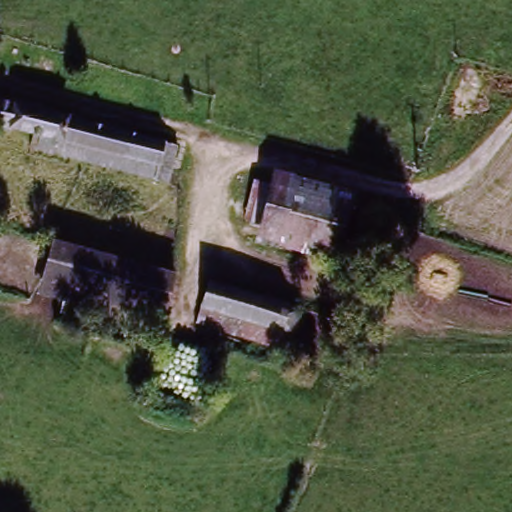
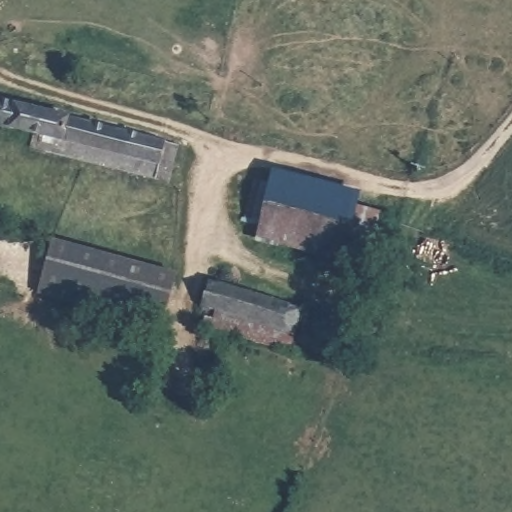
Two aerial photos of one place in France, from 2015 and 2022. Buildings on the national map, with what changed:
unchanged [(175,150),(170,181),(0,141),(0,108),(175,150)]
unchanged [(361,194),(345,262),(257,243),(274,171),(361,194)]
unchanged [(175,275),(160,326),(40,290),(55,237),(175,275)]
unchanged [(202,326),(210,301),(297,325),(291,350),(202,326)]

